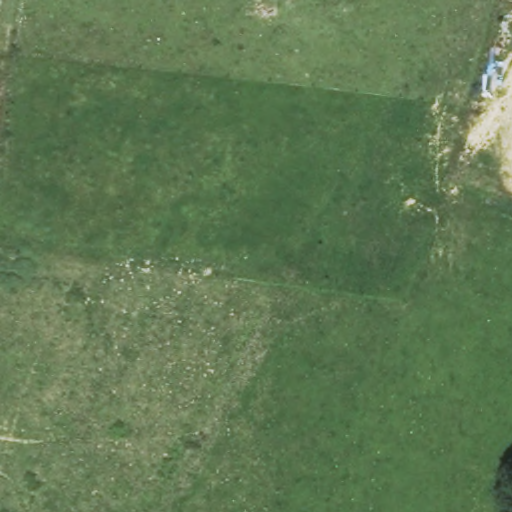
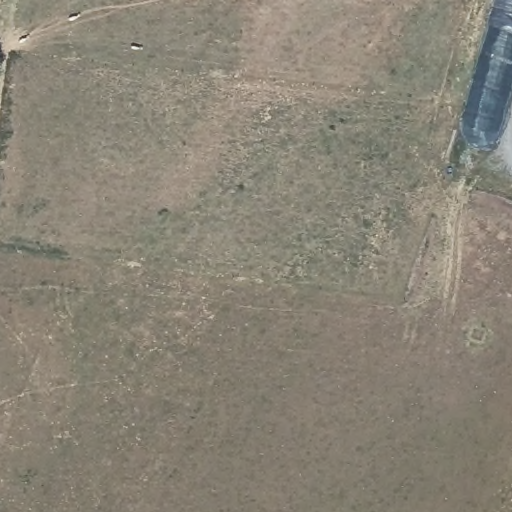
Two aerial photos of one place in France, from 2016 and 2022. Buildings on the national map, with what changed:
[]

